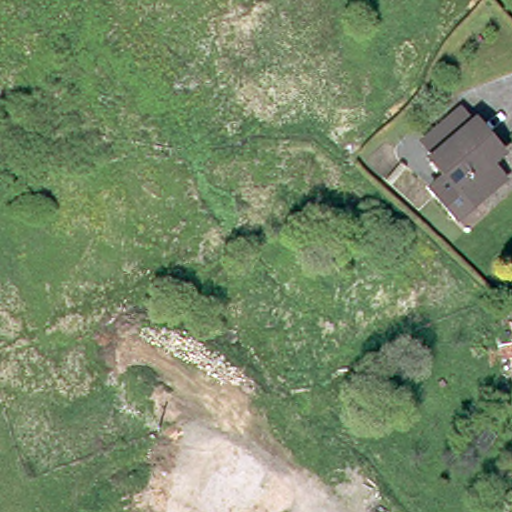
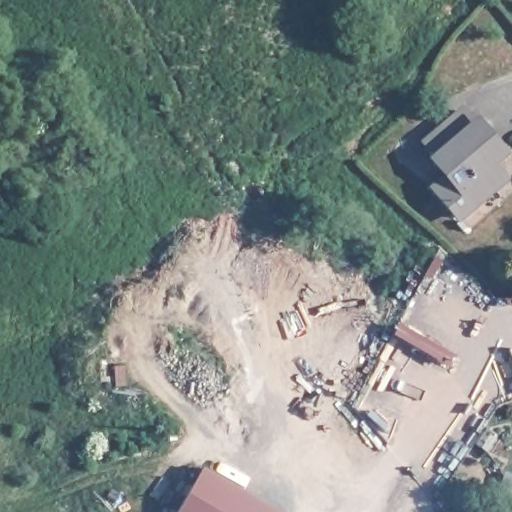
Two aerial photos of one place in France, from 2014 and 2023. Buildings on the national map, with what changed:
unchanged [(454,223),(429,192),(443,179),(430,162),(434,159),(421,145),(458,114),(471,128),(473,127),(494,150),(499,157),(494,162),(488,168),(500,182),(495,187),(454,223)]
unchanged [(469,450),(481,433),(492,441),(480,458),(469,450)]
new [(177,512),(202,467),(282,512),(177,512)]

